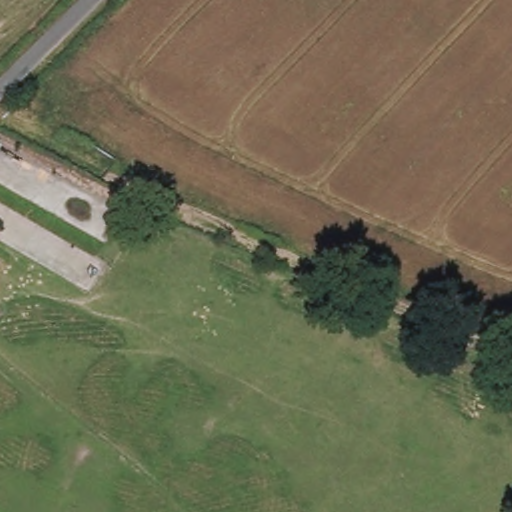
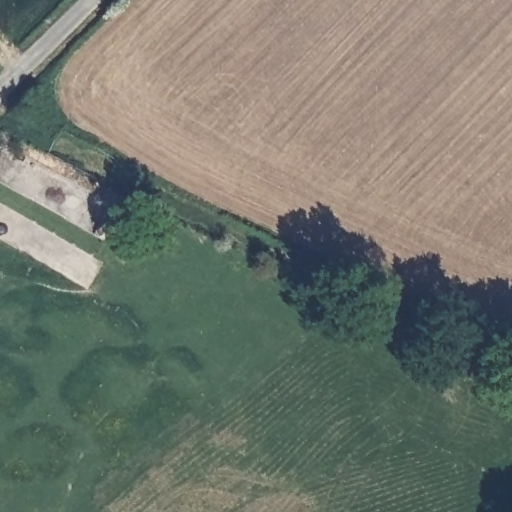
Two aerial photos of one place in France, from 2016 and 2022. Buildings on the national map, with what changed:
[]

